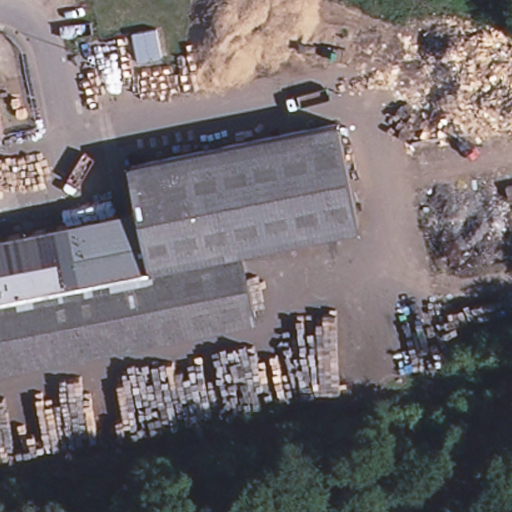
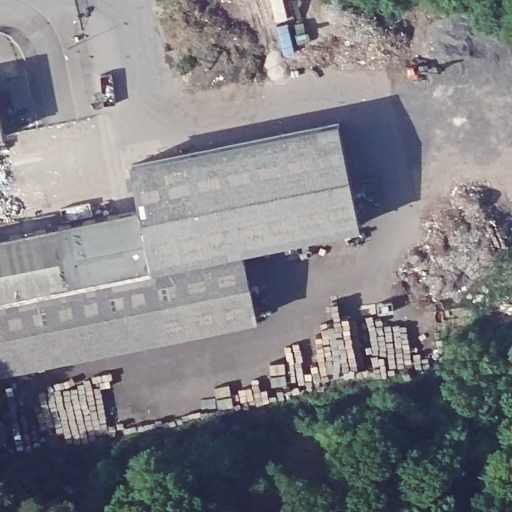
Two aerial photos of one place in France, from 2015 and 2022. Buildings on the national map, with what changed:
unchanged [(7,136),(0,137),(0,102),(7,136)]
unchanged [(342,122),(363,224),(244,248),(259,316),(182,332),(144,161),(342,122)]
unchanged [(182,332),(179,332),(169,334),(155,261),(144,205),(136,162),(144,161),(182,332)]
unchanged [(144,205),(155,261),(169,334),(0,367),(0,233),(144,205)]

